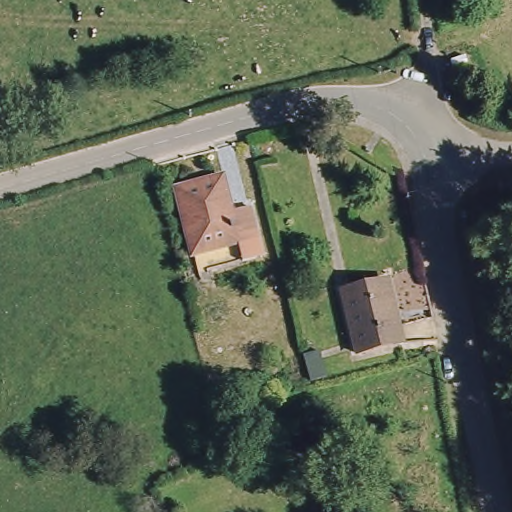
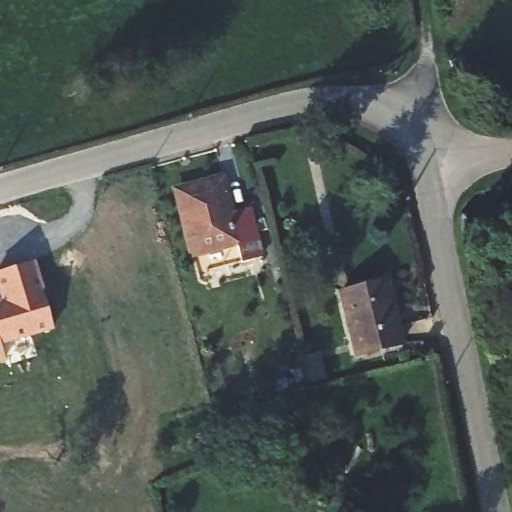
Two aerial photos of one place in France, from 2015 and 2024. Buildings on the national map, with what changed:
unchanged [(224,172),(232,205),(253,200),(265,248),(243,253),(239,234),(195,244),(180,183),(224,172)]
new [(0,295),(0,271),(34,261),(54,330),(1,345),(6,363),(0,365),(0,300),(2,299),(0,295)]
unchanged [(392,279),(409,343),(365,353),(351,291),(392,279)]

